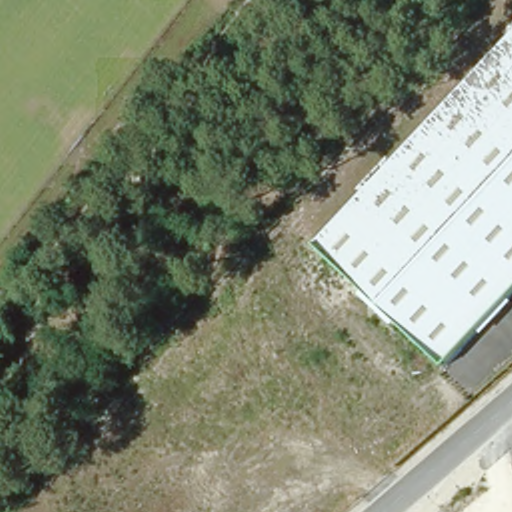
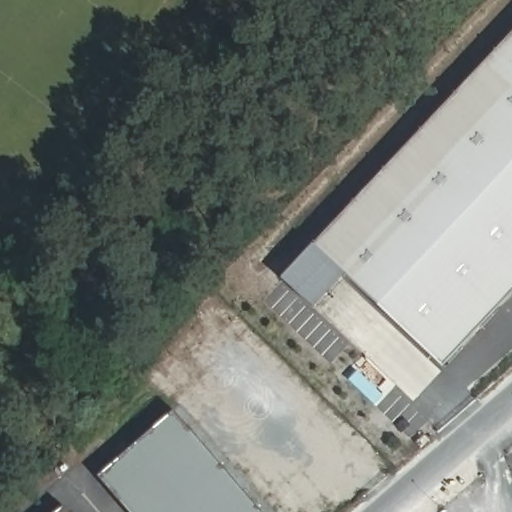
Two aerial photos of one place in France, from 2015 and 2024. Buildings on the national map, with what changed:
unchanged [(445,363),(315,244),(512,35),(512,291),(445,363)]
new [(315,308),(281,278),(315,242),(315,244),(347,273),(315,308)]
new [(260,512),(130,512),(100,477),(174,413),(260,512)]
new [(64,508),(67,512),(58,512),(64,508)]

